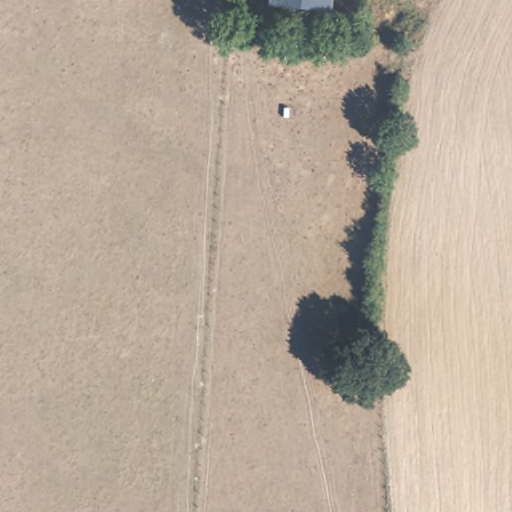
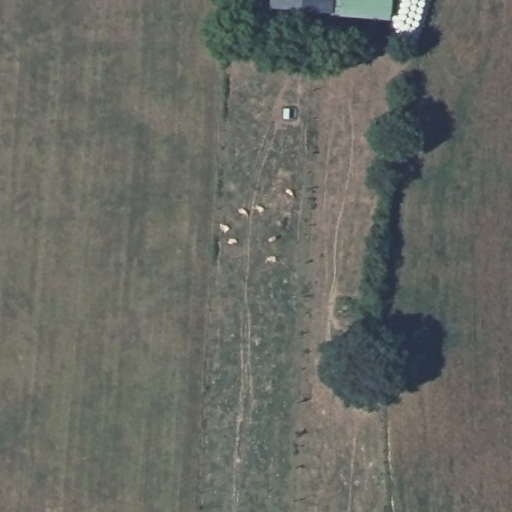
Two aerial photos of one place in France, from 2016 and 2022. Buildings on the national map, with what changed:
unchanged [(330,14),(268,9),(269,0),(331,0),(330,14)]
new [(390,20),(330,14),(331,0),(391,0),(390,20)]

